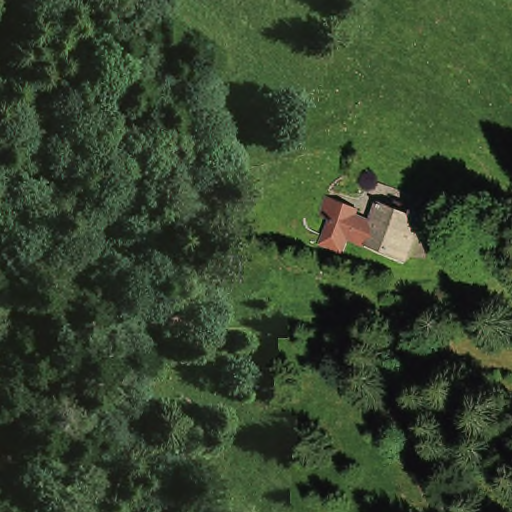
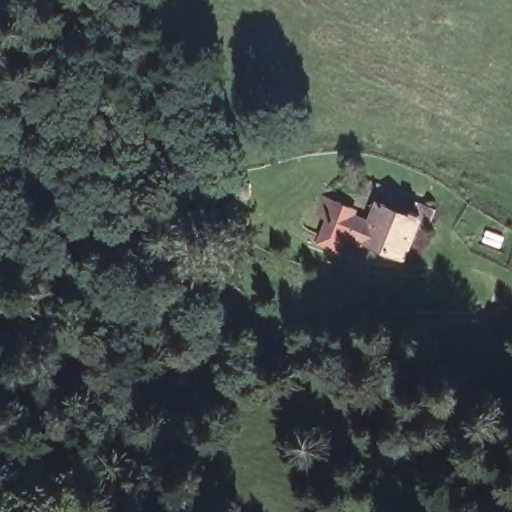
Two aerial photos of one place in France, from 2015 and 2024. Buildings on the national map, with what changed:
unchanged [(368,247),(346,237),(340,252),(336,251),(323,244),(331,221),(321,217),(328,198),(347,206),(358,210),(355,217),(377,227),(385,209),(388,205),(401,211),(417,218),(418,215),(419,213),(423,204),(442,213),(441,217),(434,230),(423,224),(405,264),(368,247)]

